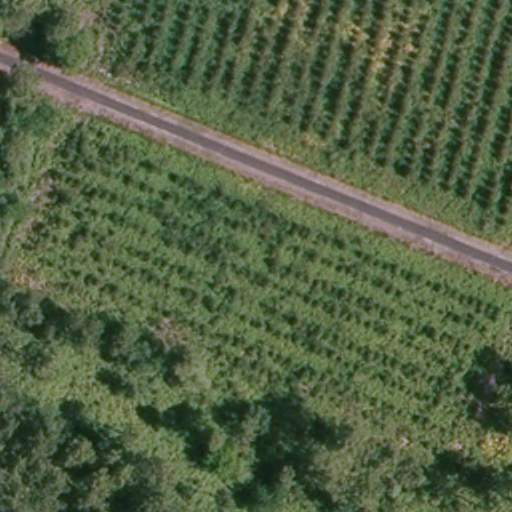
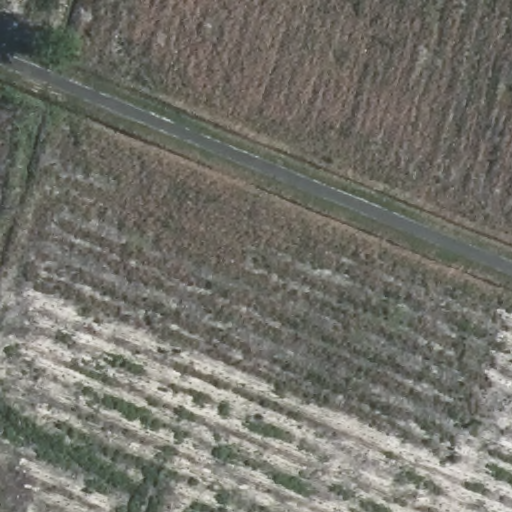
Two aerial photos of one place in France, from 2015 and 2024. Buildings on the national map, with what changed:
[]

